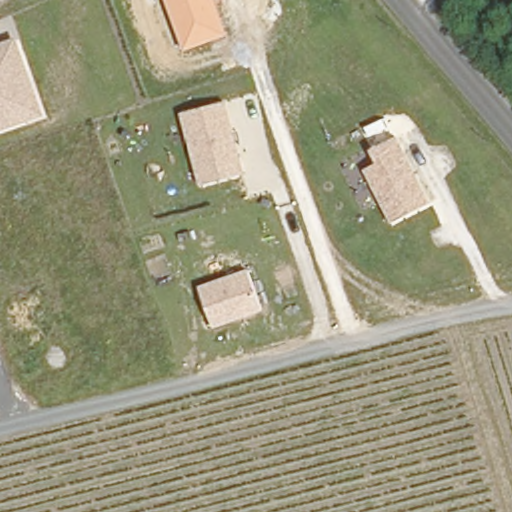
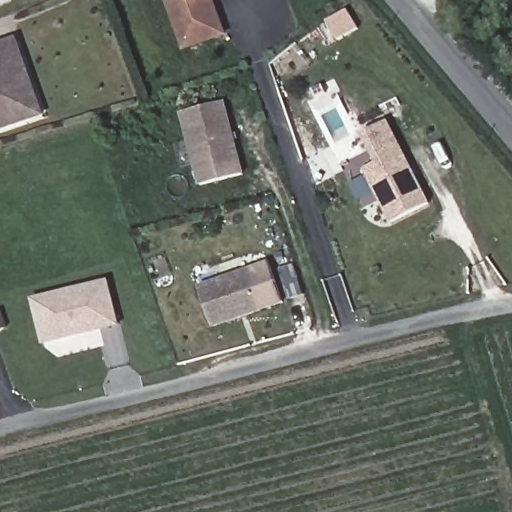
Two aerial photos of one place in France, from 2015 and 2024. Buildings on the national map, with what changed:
new [(7,0),(0,3),(0,0),(7,0)]
unchanged [(184,51),(165,0),(216,0),(227,35),(184,51)]
unchanged [(0,132),(0,44),(20,38),(46,115),(0,132)]
unchanged [(200,185),(181,114),(226,101),(244,174),(200,185)]
unchanged [(431,204),(392,224),(365,170),(377,164),(371,150),(397,138),(431,204)]
unchanged [(262,311),(213,328),(198,286),(247,269),(262,311)]
new [(109,279),(121,327),(42,347),(31,299),(40,297),(109,279)]

